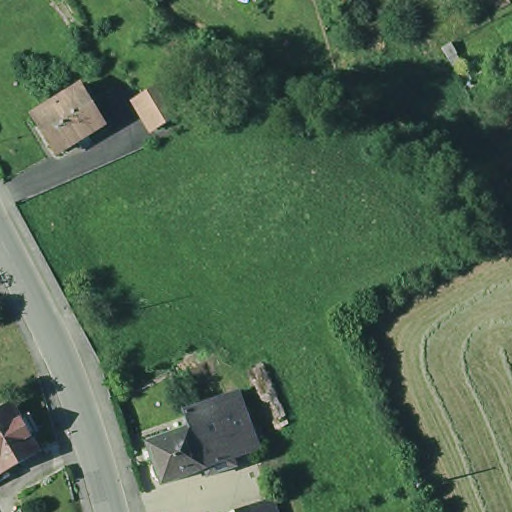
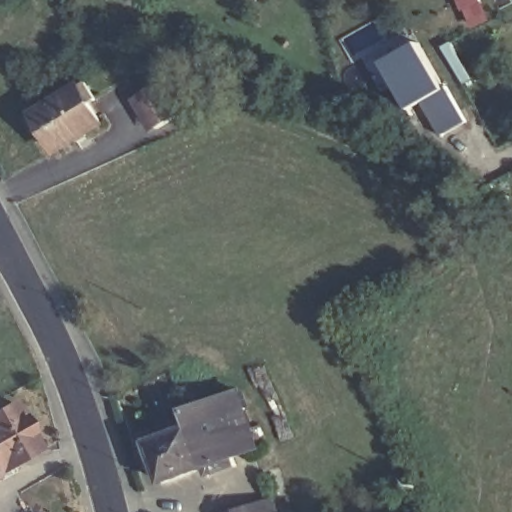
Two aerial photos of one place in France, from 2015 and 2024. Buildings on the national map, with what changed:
new [(417,41),(442,87),(445,85),(465,121),(439,135),(420,101),(408,108),(412,113),(411,114),(382,61),(417,41)]
unchanged [(73,136),(52,149),(29,113),(80,81),(90,97),(83,101),(97,123),(80,132),(82,133),(74,138),(73,136)]
unchanged [(178,113),(161,124),(140,93),(158,82),(178,113)]
unchanged [(212,468),(208,460),(207,460),(166,476),(159,472),(155,464),(158,458),(150,437),(192,421),(187,406),(222,392),(240,385),(254,420),(262,440),(252,444),(236,450),(240,458),(212,468)]
unchanged [(12,401),(37,444),(41,450),(0,472),(0,408),(12,401)]
unchanged [(272,499),(276,512),(224,512),(252,504),(272,499)]

